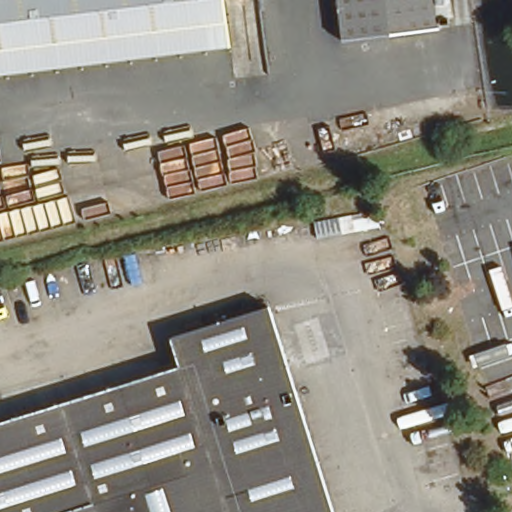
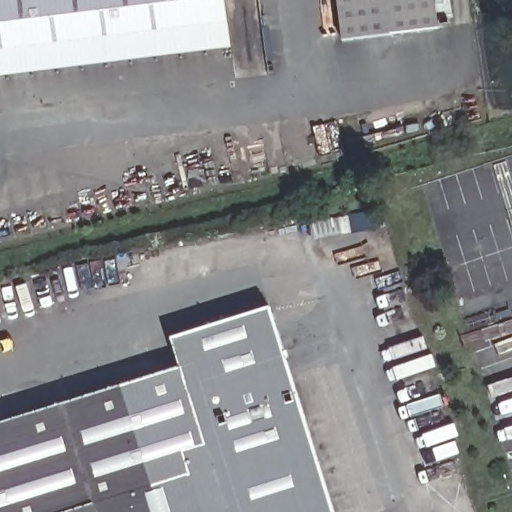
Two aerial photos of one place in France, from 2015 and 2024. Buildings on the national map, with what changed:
unchanged [(0,79),(0,0),(227,0),(235,50),(0,79)]
unchanged [(342,42),(336,0),(433,0),(437,29),(342,42)]
unchanged [(332,512),(0,512),(0,427),(181,371),(172,342),(270,313),(332,512)]

